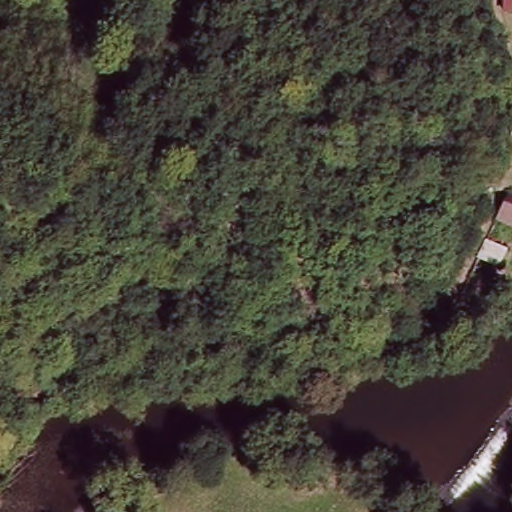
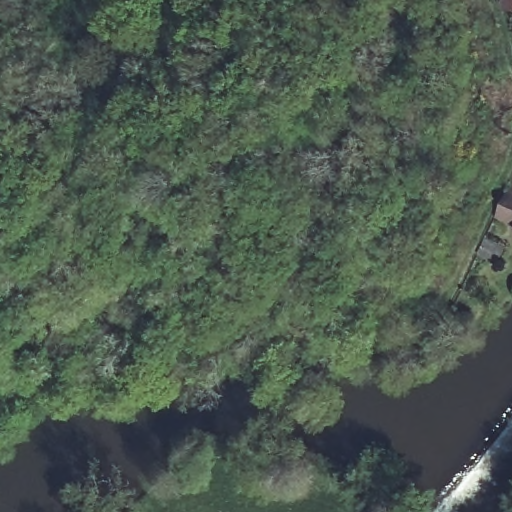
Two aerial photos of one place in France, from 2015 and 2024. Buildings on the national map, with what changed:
unchanged [(504,212),(512,187),(512,217),(504,212)]

